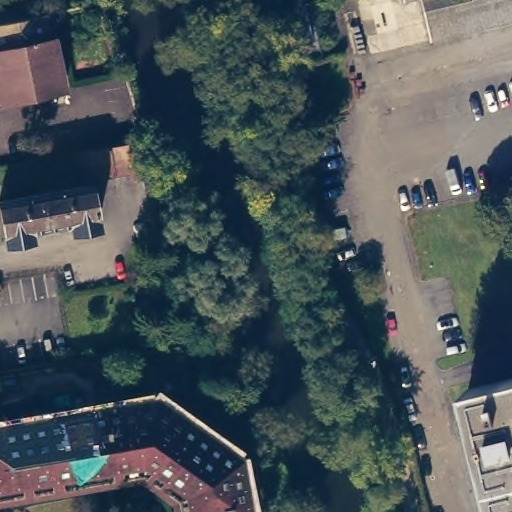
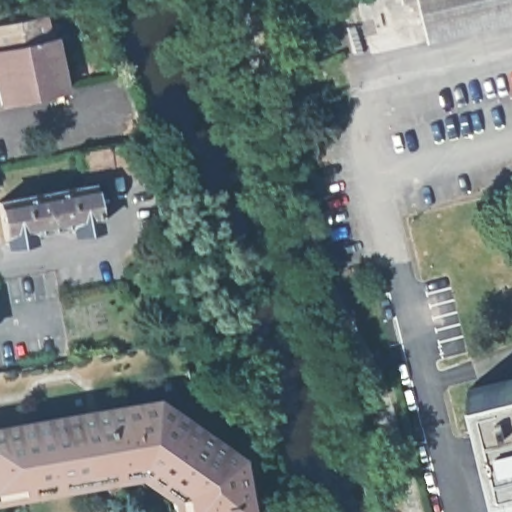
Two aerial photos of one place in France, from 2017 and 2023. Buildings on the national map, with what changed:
unchanged [(432,38),(425,2),(405,4),(404,0),(512,0),(512,20),(432,38)]
unchanged [(288,15),(303,13),(307,25),(291,28),(288,15)]
unchanged [(52,38),(65,90),(2,104),(0,93),(0,23),(43,14),(48,39),(52,38)]
unchanged [(147,188),(143,175),(132,178),(128,162),(111,165),(112,174),(85,180),(79,151),(126,143),(127,146),(141,144),(157,164),(162,185),(147,188)]
unchanged [(6,244),(0,210),(0,201),(90,185),(97,228),(72,232),(70,223),(29,231),(30,240),(6,244)]
unchanged [(468,384),(477,382),(512,373),(512,512),(499,512),(468,384)]
unchanged [(248,512),(187,512),(182,486),(142,459),(0,485),(0,425),(156,396),(236,451),(248,512)]

